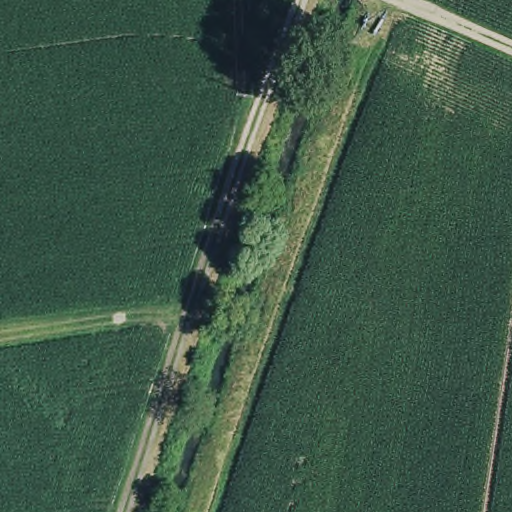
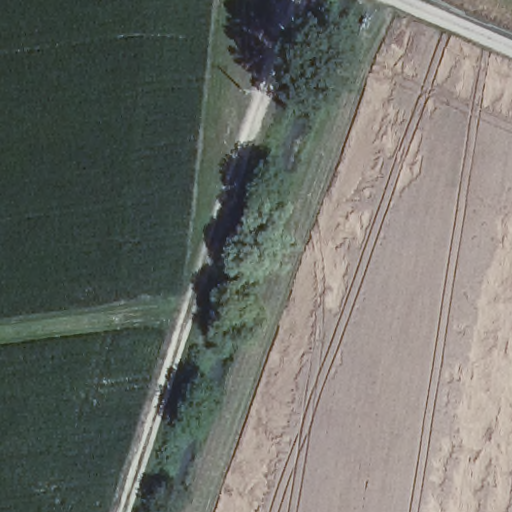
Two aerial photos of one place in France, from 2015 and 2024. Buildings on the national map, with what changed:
[]

